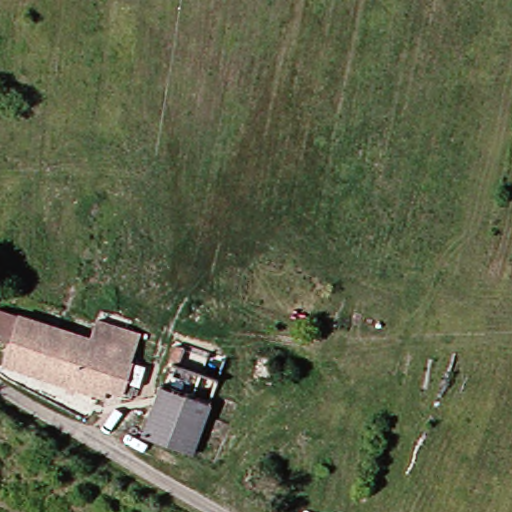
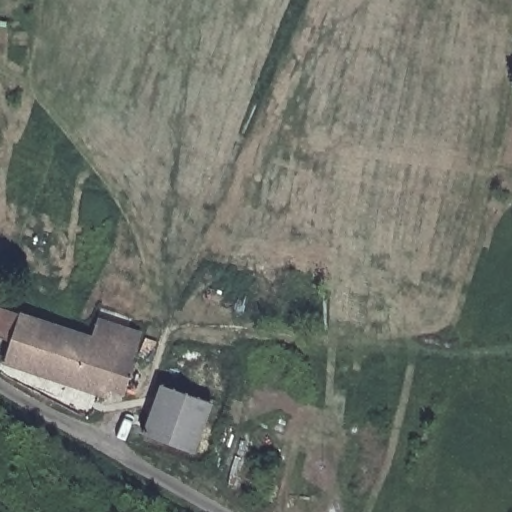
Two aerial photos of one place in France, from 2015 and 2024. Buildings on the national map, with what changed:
unchanged [(147,338),(130,391),(116,384),(109,404),(86,399),(88,390),(9,364),(15,342),(0,338),(0,305),(124,347),(130,332),(147,338)]
unchanged [(190,359),(187,366),(227,383),(218,404),(199,398),(177,452),(147,433),(179,354),(190,359)]

